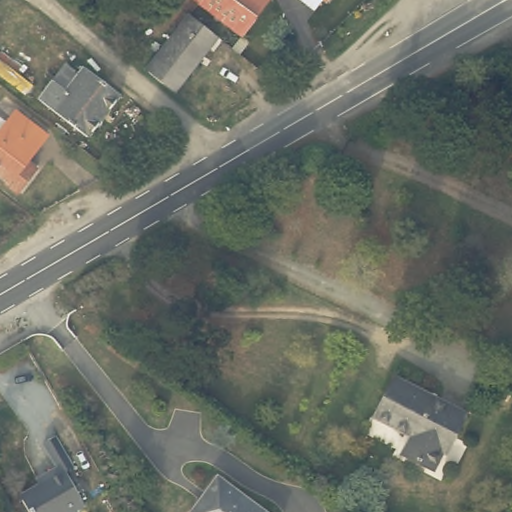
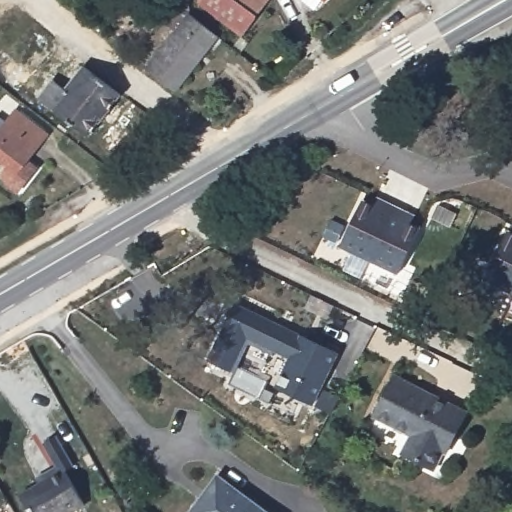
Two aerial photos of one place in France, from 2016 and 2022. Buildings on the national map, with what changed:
unchanged [(242,30),(203,0),(242,0),(257,11),(242,30)]
unchanged [(242,0),(265,0),(257,11),(242,0)]
unchanged [(304,0),(322,0),(315,9),(304,0)]
unchanged [(218,36),(175,91),(146,69),(190,14),(218,36)]
demolished [(0,79),(0,42),(29,65),(10,86),(0,79)]
unchanged [(120,89),(88,131),(39,93),(52,75),(65,58),(79,68),(84,61),(120,89)]
unchanged [(26,161),(35,168),(17,191),(8,183),(9,182),(0,174),(0,116),(7,122),(15,111),(46,135),(26,161)]
new [(362,200),(374,205),(380,196),(415,214),(411,222),(422,226),(397,275),(340,246),(324,237),(332,218),(350,227),(362,200)]
new [(485,280),(507,231),(512,232),(512,292),(485,280)]
new [(275,384),(287,358),(251,342),(239,367),(267,380),(260,397),(229,382),(235,372),(207,361),(235,302),(300,335),(338,353),(313,405),(275,384)]
unchanged [(467,412),(446,454),(443,452),(435,469),(402,452),(411,436),(374,417),(395,376),(467,412)]
unchanged [(60,458),(90,501),(67,512),(31,512),(15,485),(60,458)]
unchanged [(268,512),(190,512),(218,475),(268,512)]

